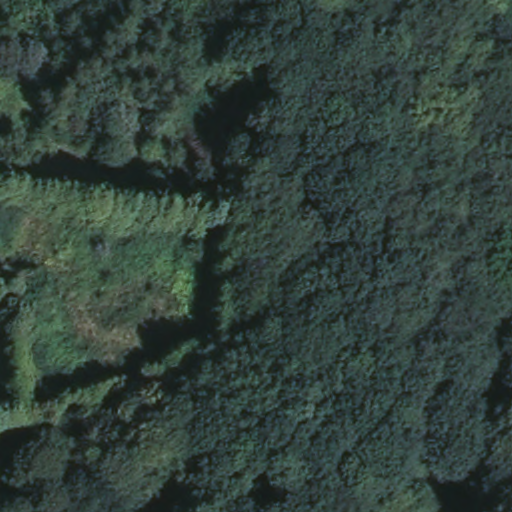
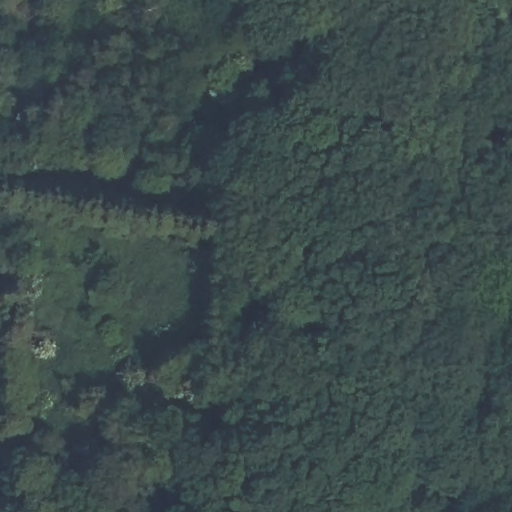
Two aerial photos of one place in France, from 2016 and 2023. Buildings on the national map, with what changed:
unchanged [(0,329),(1,329),(6,369),(0,369),(0,329)]
unchanged [(0,407),(0,369),(6,369),(11,404),(0,407)]

